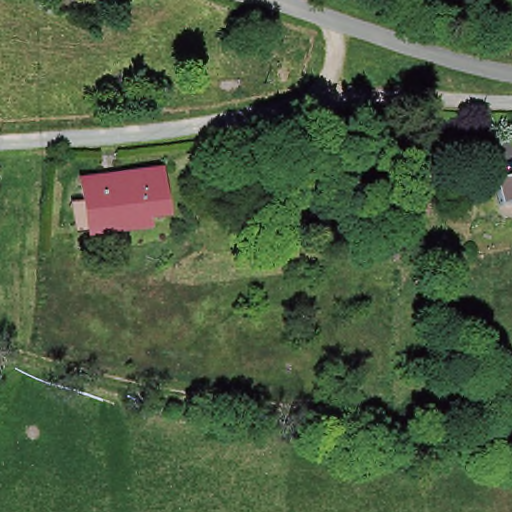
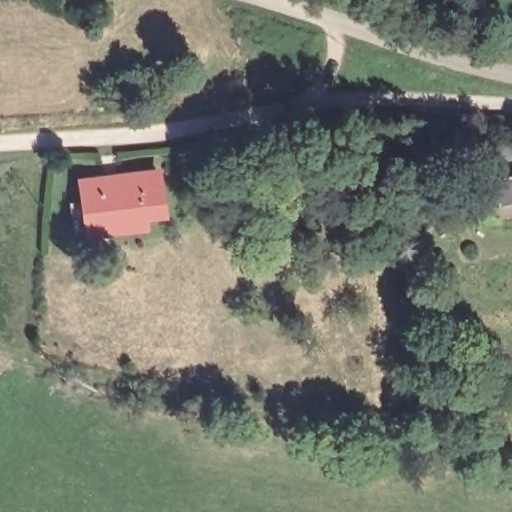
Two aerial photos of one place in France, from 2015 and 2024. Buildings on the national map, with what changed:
unchanged [(167,213),(90,222),(85,178),(162,169),(167,213)]

